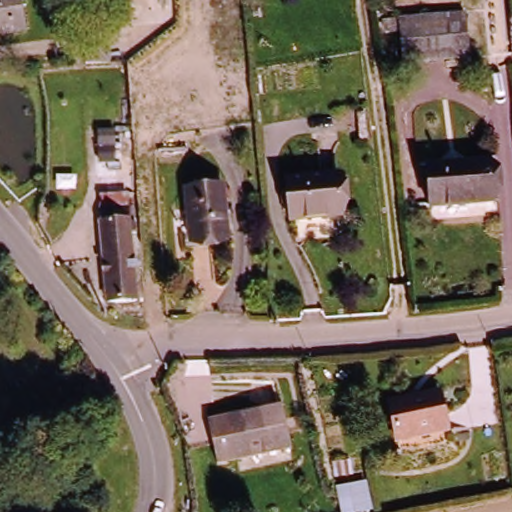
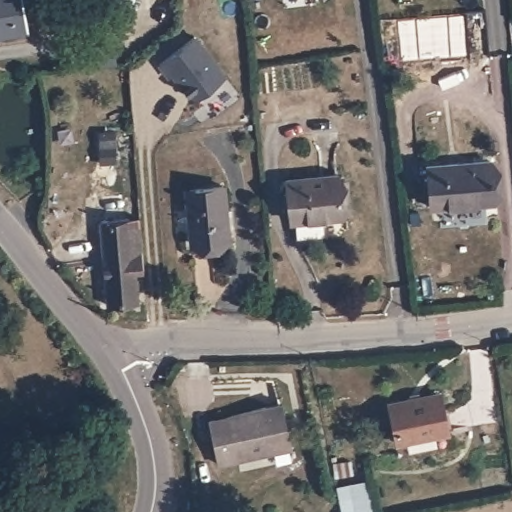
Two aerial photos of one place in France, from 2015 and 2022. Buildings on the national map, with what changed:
unchanged [(0,37),(0,0),(21,0),(25,34),(0,37)]
unchanged [(469,13),(474,57),(404,65),(400,38),(385,40),(384,21),(469,13)]
new [(197,39),(229,80),(201,101),(194,100),(177,77),(173,80),(162,66),(197,39)]
unchanged [(87,47),(113,46),(115,62),(93,64),(87,64),(87,47)]
unchanged [(432,166),(500,159),(505,207),(435,214),(432,166)]
unchanged [(333,179),(335,219),(288,222),(285,180),(333,179)]
unchanged [(227,186),(232,242),(194,245),(189,188),(227,186)]
unchanged [(110,312),(98,219),(117,216),(115,202),(130,201),(134,225),(123,227),(134,308),(110,312)]
unchanged [(439,392),(445,436),(392,444),(385,402),(439,392)]
unchanged [(283,403),(290,448),(234,457),(225,412),(283,403)]

